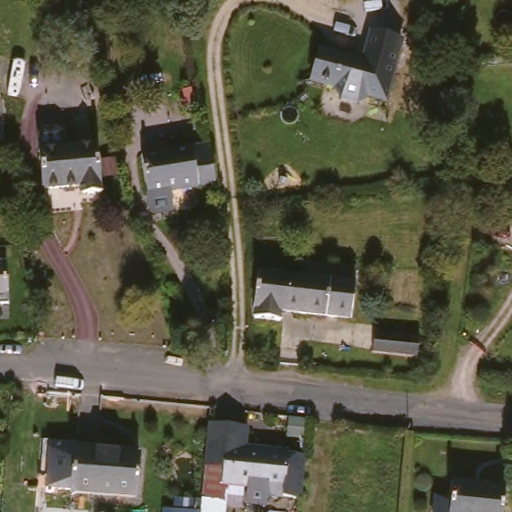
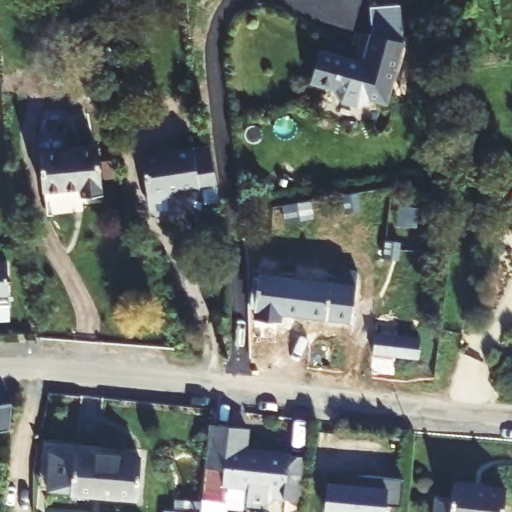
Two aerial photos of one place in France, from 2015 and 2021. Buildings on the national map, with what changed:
unchanged [(315,49),(356,58),(363,33),(396,41),(382,101),(360,98),(354,103),(347,103),(338,101),(334,98),(331,89),(305,82),(315,49)]
unchanged [(46,135),(50,129),(64,128),(69,132),(71,147),(104,143),(111,193),(90,196),(89,189),(53,194),(47,150),(46,135)]
unchanged [(205,143),(212,182),(212,185),(153,196),(146,154),(205,143)]
unchanged [(6,261),(9,296),(0,296),(0,261),(6,261)]
unchanged [(338,263),(361,265),(360,278),(356,315),(287,310),(287,316),(257,312),(260,268),(337,276),(338,263)]
unchanged [(383,329),(425,332),(424,357),(380,354),(379,329),(383,329)]
unchanged [(286,495),(287,490),(225,484),(227,463),(211,461),(214,424),(251,428),(250,445),(290,449),(290,452),(309,454),(305,497),(286,495)]
unchanged [(89,448),(144,452),(142,495),(76,490),(79,447),(89,448)]
new [(401,478),(398,505),(384,503),(383,512),(323,512),(326,481),(355,483),(357,475),(401,478)]
unchanged [(507,483),(506,512),(458,512),(459,481),(507,483)]

